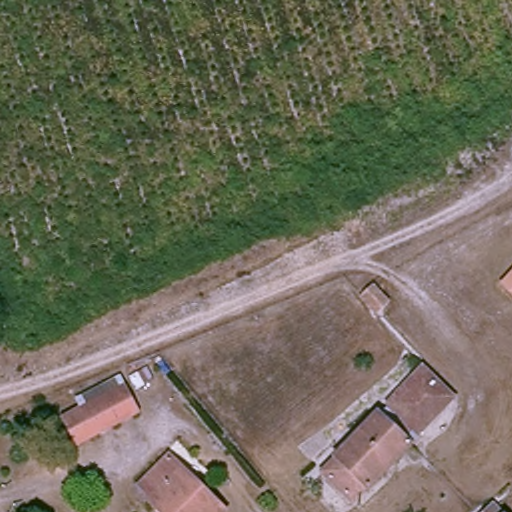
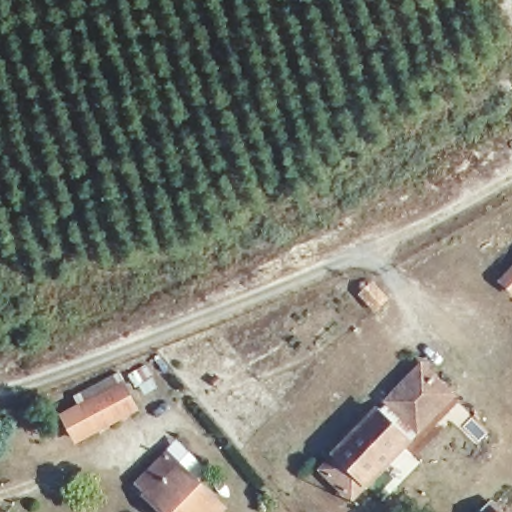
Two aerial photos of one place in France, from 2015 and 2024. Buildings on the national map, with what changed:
unchanged [(512,285),(500,274),(512,261),(512,285)]
unchanged [(348,286),(363,270),(388,288),(371,304),(348,286)]
unchanged [(419,363),(450,389),(420,420),(391,394),(419,363)]
unchanged [(130,377),(144,401),(73,440),(60,411),(130,377)]
unchanged [(366,484),(335,455),(376,410),(408,437),(366,484)]
unchanged [(173,458),(223,501),(214,512),(160,512),(141,497),(173,458)]
unchanged [(492,504),(501,512),(485,512),(492,504)]

